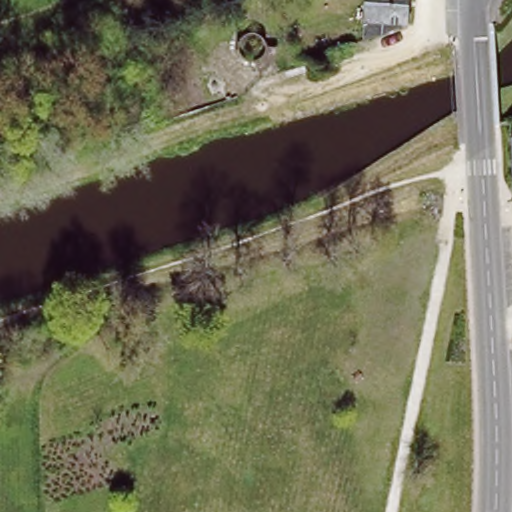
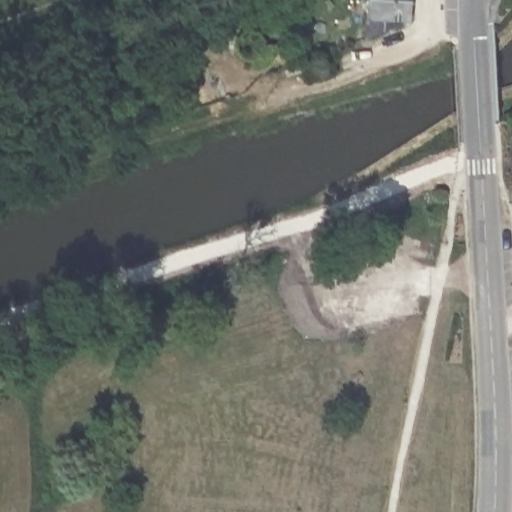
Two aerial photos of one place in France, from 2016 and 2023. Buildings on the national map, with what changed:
unchanged [(413,17),(371,28),(373,0),(414,0),(413,17)]
unchanged [(264,31),(264,36),(259,39),(253,40),(248,36),(246,31),(248,25),(253,21),(259,21),(263,25),(264,31)]

